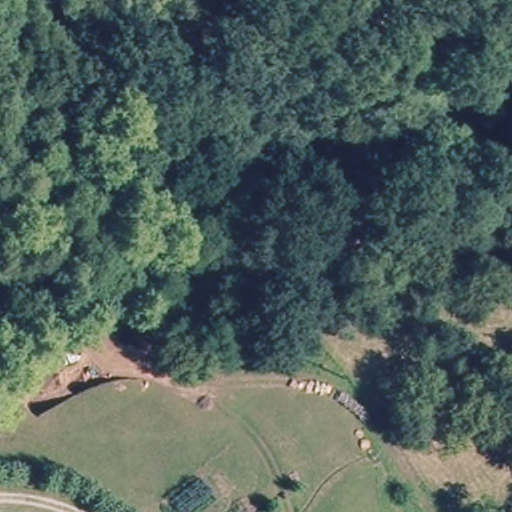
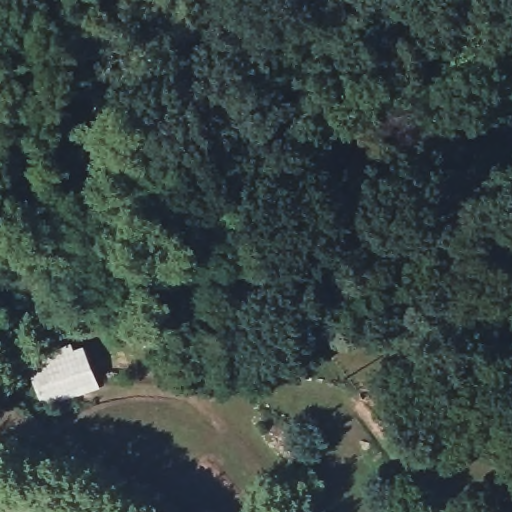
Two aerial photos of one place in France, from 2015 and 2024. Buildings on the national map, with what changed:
new [(57,348),(59,351),(83,344),(100,388),(40,406),(25,360),(57,348)]

